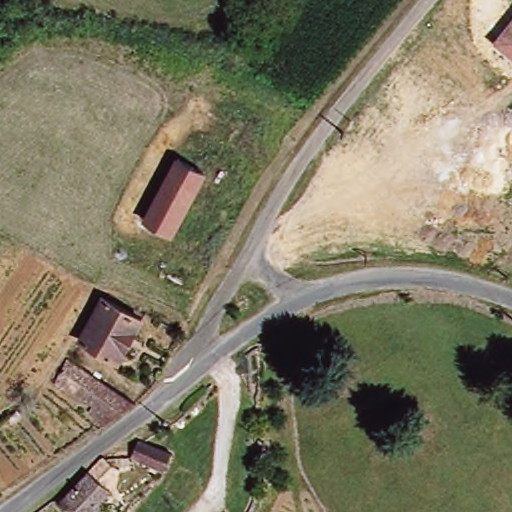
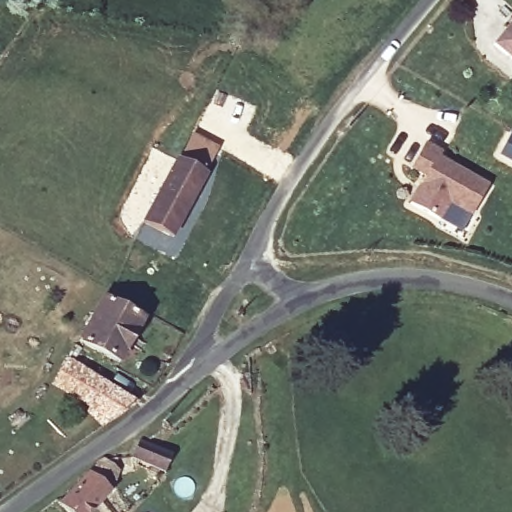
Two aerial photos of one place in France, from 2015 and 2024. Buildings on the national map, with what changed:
unchanged [(494,44),(512,21),(512,58),(494,44)]
new [(426,175),(412,166),(425,142),(442,151),(439,156),(489,182),(474,211),(450,199),(440,217),(412,202),(426,175)]
unchanged [(207,174),(173,240),(140,222),(175,159),(207,174)]
unchanged [(104,304),(140,327),(116,364),(80,340),(104,304)]
unchanged [(86,420),(90,414),(47,387),(64,361),(140,409),(104,432),(86,420)]
unchanged [(142,445),(169,463),(163,475),(134,459),(142,445)]
unchanged [(99,512),(68,512),(64,507),(103,460),(119,470),(115,492),(99,512)]

